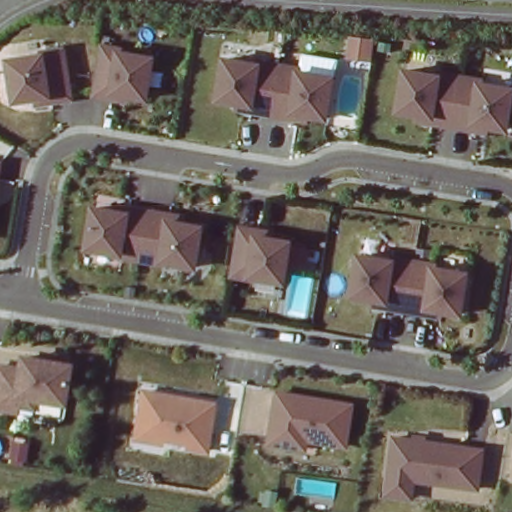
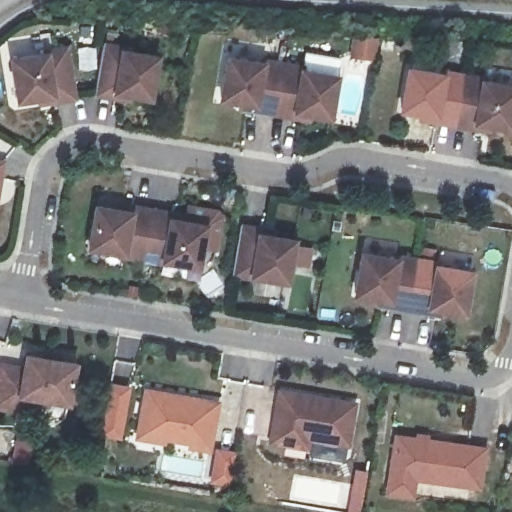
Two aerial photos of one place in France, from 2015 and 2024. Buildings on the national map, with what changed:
unchanged [(55,49),(56,56),(77,53),(82,101),(44,109),(44,100),(24,104),(15,56),(55,49)]
unchanged [(119,104),(98,100),(106,51),(127,54),(127,57),(160,63),(153,103),(133,100),(132,106),(119,104)]
unchanged [(244,106),(224,103),(230,62),(264,68),(264,65),(285,68),(279,102),(277,117),(256,114),(243,112),(244,106)]
unchanged [(298,121),(277,117),(279,102),(285,68),(306,71),(305,74),(339,79),(332,120),(312,117),(311,123),(298,121)]
unchanged [(427,114),(407,110),(415,69),(447,76),(448,73),(469,77),(460,126),(439,122),(425,120),(427,114)]
unchanged [(460,126),(469,77),(490,81),(489,84),(512,88),(512,130),(495,127),(493,133),(480,130),(460,126)]
unchanged [(0,235),(0,165),(11,167),(0,235)]
unchanged [(125,258),(125,255),(92,250),(98,209),(119,212),(120,206),(133,209),(154,212),(146,261),(125,258)]
unchanged [(188,218),(187,224),(207,227),(200,268),(167,262),(166,265),(146,261),(154,212),(174,215),(188,218)]
unchanged [(279,234),(278,240),(298,243),(292,284),(259,279),(258,282),(238,278),(241,254),(245,229),(265,232),(279,234)]
unchanged [(477,275),(470,311),(456,307),(452,319),(379,312),(379,301),(355,298),(368,253),(477,275)]
unchanged [(26,409),(26,411),(1,406),(8,365),(32,369),(34,356),(82,364),(75,402),(44,397),(42,412),(26,409)]
unchanged [(141,442),(142,433),(149,395),(220,408),(212,455),(193,451),(194,447),(166,442),(165,446),(141,442)]
unchanged [(274,446),(281,395),(355,406),(350,447),(310,442),(309,451),(291,448),(274,446)]
unchanged [(392,495),(394,477),(399,438),(487,448),(483,488),(419,480),(417,498),(392,495)]

